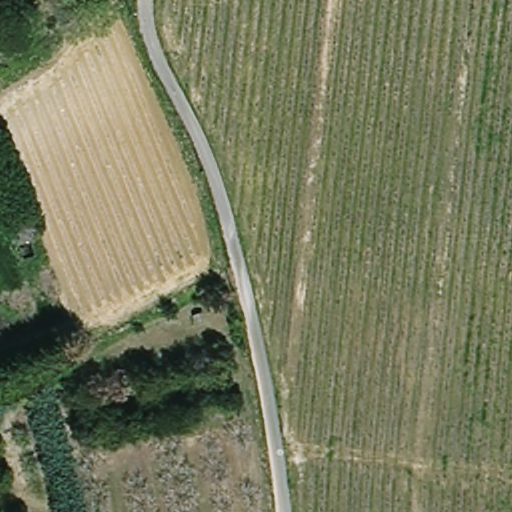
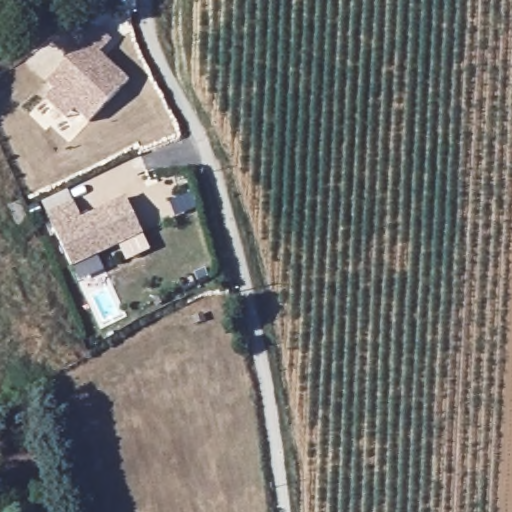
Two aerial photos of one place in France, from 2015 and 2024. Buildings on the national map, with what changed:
new [(65,118),(46,98),(54,90),(45,81),(100,29),(112,40),(100,53),(129,81),(88,123),(74,109),(65,118)]
new [(46,215),(74,201),(82,218),(125,197),(144,234),(73,268),(46,215)]

